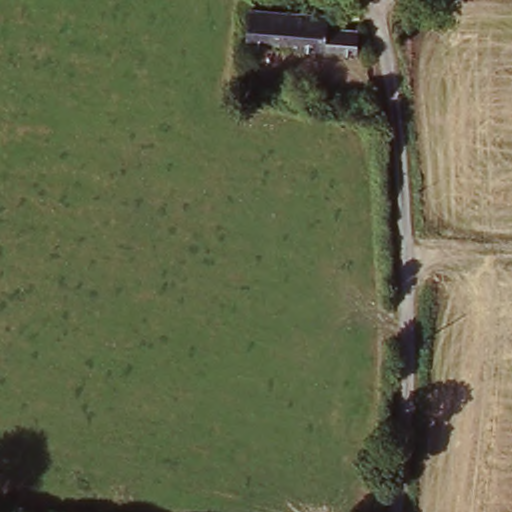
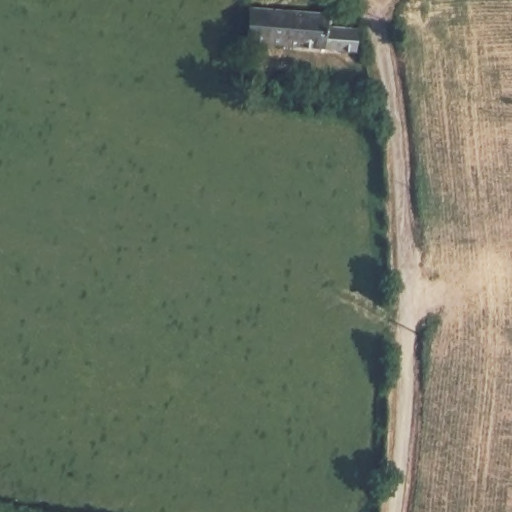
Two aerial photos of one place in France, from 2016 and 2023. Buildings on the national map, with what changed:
unchanged [(333,15),(334,30),(353,32),(353,54),(252,45),(254,9),(333,15)]

